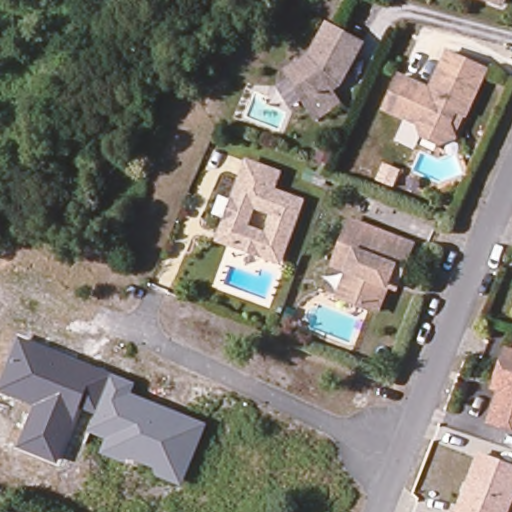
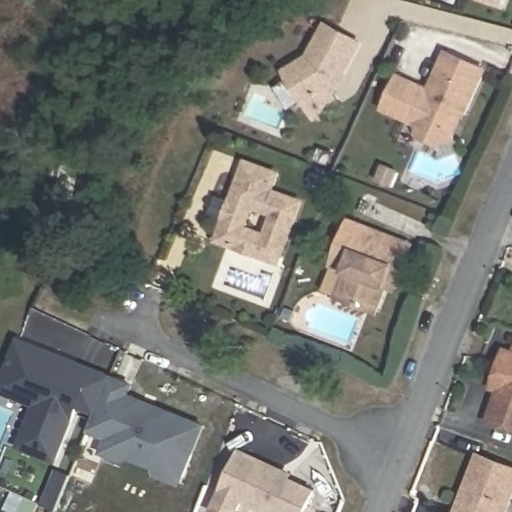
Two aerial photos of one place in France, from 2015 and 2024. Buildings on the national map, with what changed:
unchanged [(480,0),(507,0),(504,9),(500,7),(480,0)]
unchanged [(312,64),(330,33),(364,52),(347,83),(343,81),(334,96),(332,98),(340,111),(317,125),(289,78),(312,64)]
unchanged [(398,79),(429,93),(447,55),(484,73),(463,117),(453,113),(447,125),(452,140),(437,146),(421,139),(416,126),(383,111),(398,79)]
unchanged [(267,258),(234,246),(220,241),(222,236),(249,163),(280,175),(274,192),(303,203),(282,259),(281,263),(267,258)]
unchanged [(389,287),(378,313),(325,292),(352,223),(414,247),(402,278),(397,290),(389,287)]
unchanged [(152,473),(153,469),(129,459),(126,463),(102,454),(108,440),(88,432),(95,415),(81,410),(57,463),(19,447),(34,404),(0,390),(0,389),(20,337),(136,384),(132,393),(208,425),(181,485),(152,473)]
unchanged [(503,404),(506,395),(494,391),(506,354),(512,356),(512,433),(490,425),(498,402),(503,404)]
new [(278,469),(287,474),(285,478),(311,490),(300,512),(270,512),(240,498),(232,512),(215,512),(211,510),(239,451),(278,469)]
unchanged [(509,512),(455,512),(479,452),(512,464),(512,505),(509,512)]
unchanged [(16,512),(0,512),(0,511),(3,505),(16,511),(16,512)]

